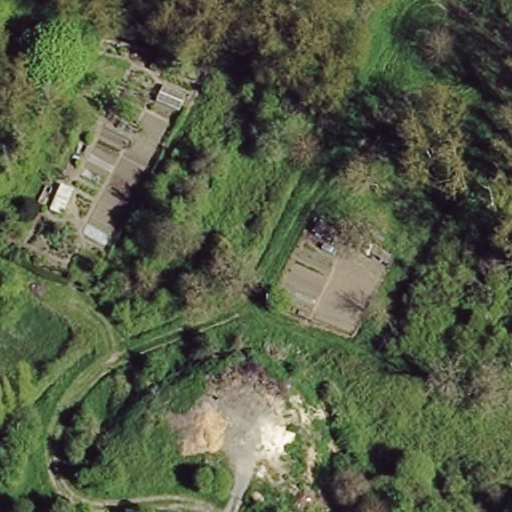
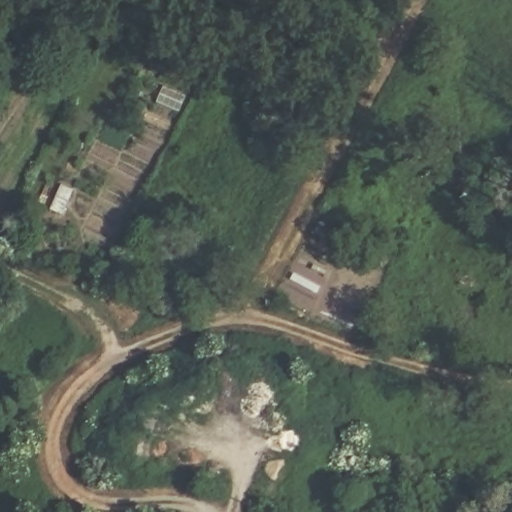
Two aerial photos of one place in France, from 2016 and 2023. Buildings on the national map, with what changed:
unchanged [(155,101),(164,84),(186,98),(179,114),(155,101)]
unchanged [(61,215),(47,208),(60,182),(77,190),(61,215)]

